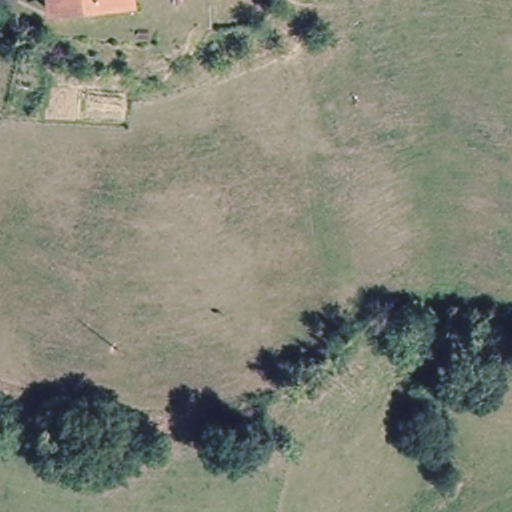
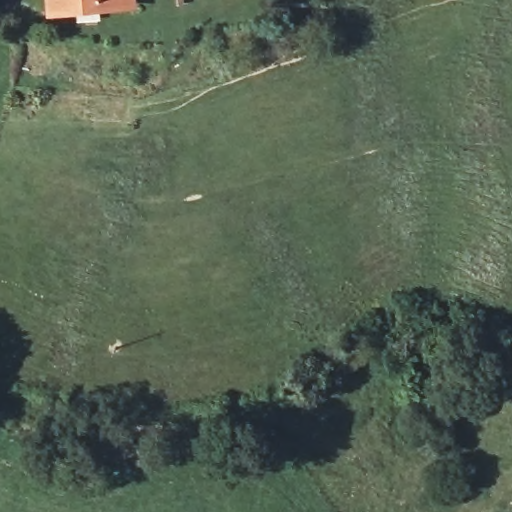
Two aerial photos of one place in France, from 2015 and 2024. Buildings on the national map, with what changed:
unchanged [(56,7),(55,0),(90,0),(89,4),(56,7)]

